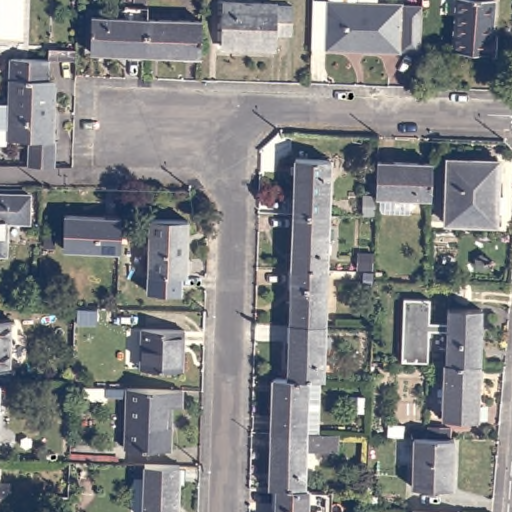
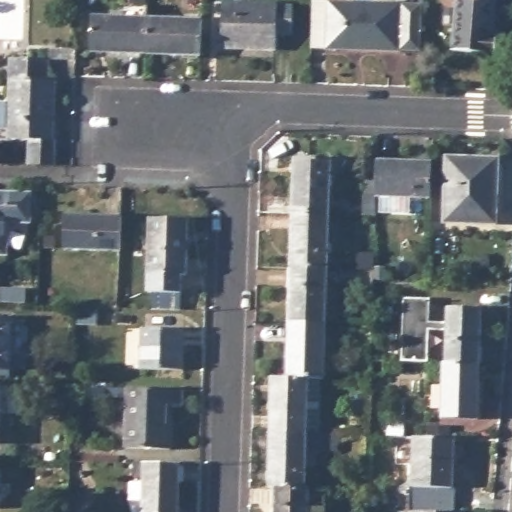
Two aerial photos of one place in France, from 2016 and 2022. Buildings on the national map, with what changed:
unchanged [(372,49),(330,48),(333,0),(373,0),(372,49)]
unchanged [(373,0),(407,0),(408,1),(427,1),(426,49),(407,48),(406,50),(372,49),(373,0)]
unchanged [(457,0),(495,0),(493,32),(498,34),(497,54),(453,51),(457,0)]
unchanged [(222,47),(223,3),(258,5),(257,49),(222,47)]
unchanged [(91,52),(93,17),(125,18),(125,5),(148,6),(148,19),(146,54),(91,52)]
unchanged [(258,5),(294,6),(293,37),(278,37),(278,50),(257,49),(258,5)]
unchanged [(148,19),(203,21),(202,56),(146,54),(148,19)]
unchanged [(9,127),(0,127),(0,103),(10,103),(12,59),(50,60),(49,80),(55,80),(54,112),(50,112),(49,140),(54,140),(54,166),(25,165),(26,139),(9,139),(9,127)]
unchanged [(378,139),(377,149),(371,149),(372,139),(378,139)]
unchanged [(448,152),(498,155),(497,212),(465,212),(464,217),(446,217),(448,152)]
unchanged [(382,207),(383,192),(377,192),(378,157),(433,159),(431,194),(410,192),(409,208),(382,207)]
unchanged [(291,163),(327,165),(324,219),(289,217),(291,163)]
unchanged [(376,189),(376,209),(363,209),(364,189),(376,189)]
unchanged [(29,221),(8,220),(7,253),(0,253),(0,193),(30,194),(29,221)]
unchanged [(65,249),(67,215),(122,217),(120,251),(65,249)]
unchanged [(289,217),(324,219),(323,273),(288,272),(289,217)]
unchanged [(151,219),(189,220),(187,273),(183,273),(182,292),(150,291),(150,272),(149,272),(151,219)]
unchanged [(288,272),(323,273),(321,327),(285,327),(288,272)]
unchanged [(481,308),(479,363),(447,362),(448,328),(429,328),(429,362),(402,361),(404,297),(431,298),(430,322),(449,322),(449,307),(481,308)]
unchanged [(10,367),(0,367),(0,317),(12,317),(10,367)]
unchanged [(285,327),(321,327),(319,382),(304,382),(284,381),(285,327)]
unchanged [(141,329),(184,331),(183,370),(139,369),(141,329)]
unchanged [(324,341),(340,342),(339,352),(324,352),(324,341)]
unchanged [(447,362),(479,363),(478,418),(443,417),(444,362),(447,362)]
unchanged [(268,381),(284,381),(304,382),(303,437),(267,436),(268,381)]
unchanged [(183,392),(183,408),(173,407),(171,453),(127,452),(129,400),(107,398),(107,391),(183,392)]
unchanged [(387,423),(404,424),(404,435),(387,434),(387,423)]
unchanged [(267,436),(303,437),(332,437),(332,456),(302,455),(301,492),(273,491),(264,491),(267,436)]
unchanged [(454,442),(453,493),(414,492),(415,440),(454,442)]
unchanged [(174,512),(139,512),(139,467),(175,468),(174,512)]
unchanged [(301,492),(304,492),(304,512),(272,512),(273,491),(301,492)]
unchanged [(412,512),(412,511),(452,512),(412,512)]

